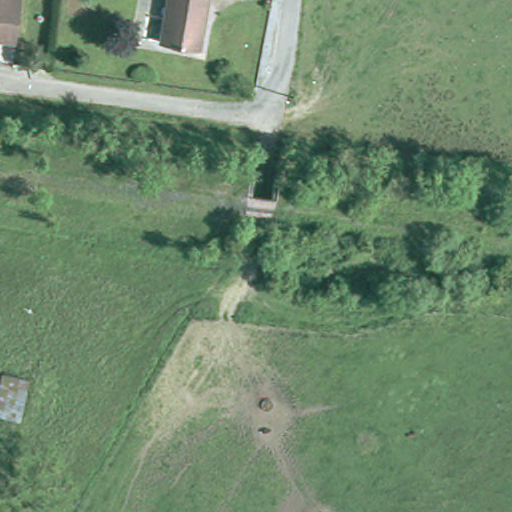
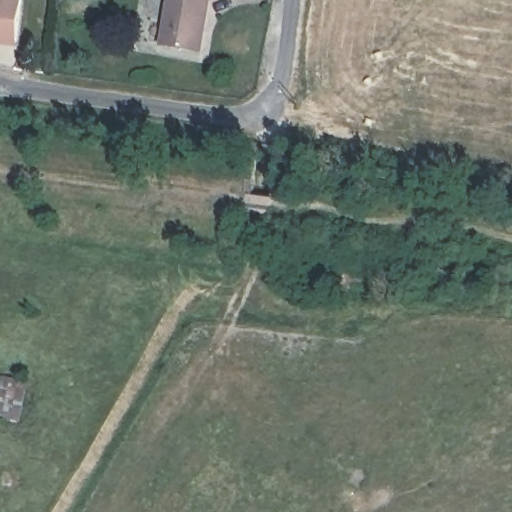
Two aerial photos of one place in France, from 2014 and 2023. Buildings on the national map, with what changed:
unchanged [(4,0),(27,0),(21,42),(0,39),(0,0),(1,0),(4,0)]
unchanged [(207,37),(167,32),(172,0),(211,0),(207,37)]

